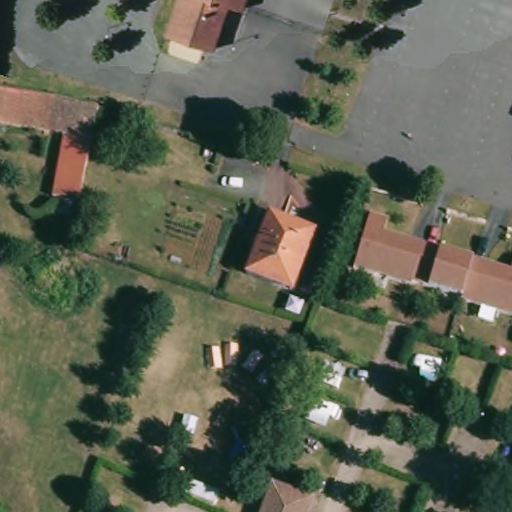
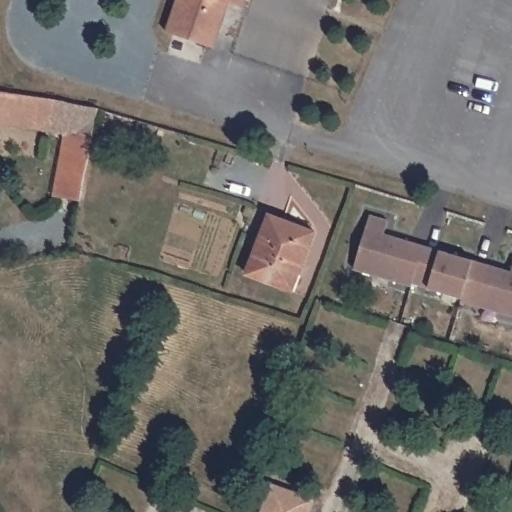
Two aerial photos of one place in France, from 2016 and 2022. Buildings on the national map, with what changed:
unchanged [(241,11),(227,8),(212,52),(162,35),(174,0),(244,0),(241,11)]
unchanged [(0,125),(0,91),(8,92),(29,96),(59,101),(94,109),(95,109),(92,121),(77,193),(76,200),(49,196),(59,134),(0,125)]
unchanged [(456,298),(457,295),(408,280),(407,283),(349,265),(366,211),(384,217),(380,231),(506,270),(511,256),(512,256),(512,315),(456,298)]
unchanged [(283,288),(246,275),(252,258),(268,216),(313,233),(301,268),(298,272),(292,292),(283,288)]
unchanged [(263,512),(274,482),(312,497),(307,512),(263,512)]

